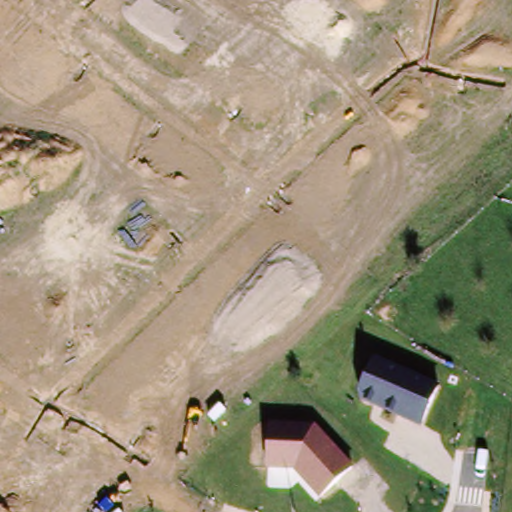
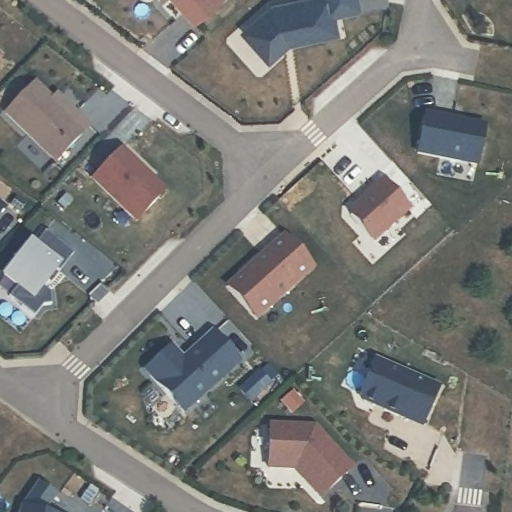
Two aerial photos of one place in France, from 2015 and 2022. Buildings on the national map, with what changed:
new [(178,0),(221,0),(196,21),(178,0)]
new [(310,0),(362,0),(364,11),(338,16),(341,35),(290,44),(273,64),(242,38),(274,7),(310,0)]
new [(3,58),(0,61),(0,55),(3,58)]
new [(53,96),(56,93),(92,125),(56,164),(3,114),(34,80),(53,96)]
new [(427,114),(488,126),(479,166),(418,154),(427,114)]
new [(124,151),(168,193),(139,223),(95,181),(124,151)]
new [(413,209),(374,244),(346,210),(382,176),(413,209)]
new [(7,209),(0,218),(0,204),(7,209)]
new [(72,252),(60,265),(43,287),(50,289),(53,305),(42,308),(34,317),(8,296),(11,286),(1,279),(29,240),(34,244),(44,230),(72,252)]
new [(317,269),(257,322),(224,287),(282,233),(317,269)]
new [(183,355),(211,328),(242,360),(181,414),(141,370),(171,344),(183,355)]
unchanged [(376,360),(439,385),(422,426),(358,401),(376,360)]
unchanged [(318,425),(356,466),(320,498),(292,467),(267,467),(269,422),(318,425)]
new [(22,510),(40,486),(56,497),(45,512),(21,512),(22,510)]

